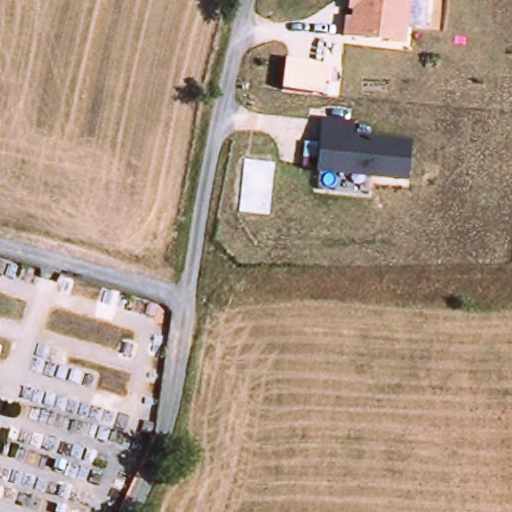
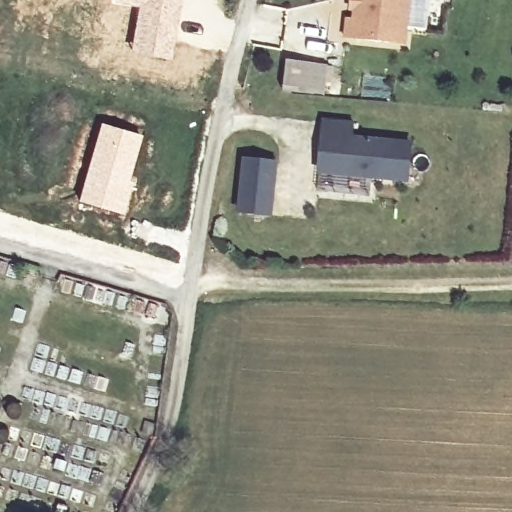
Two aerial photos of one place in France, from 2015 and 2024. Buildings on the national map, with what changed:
new [(111,0),(182,0),(170,59),(128,51),(136,6),(111,1),(111,0)]
unchanged [(345,40),(346,18),(354,19),(355,11),(350,11),(350,0),(414,0),(409,47),(345,40)]
new [(285,60),(333,67),(332,83),(325,83),(323,95),(282,92),(285,60)]
unchanged [(325,117),(356,120),(355,135),(415,142),(411,183),(320,175),(325,117)]
new [(100,121),(143,134),(130,179),(133,181),(124,213),(76,200),(100,121)]
unchanged [(236,215),(242,159),(278,162),(272,219),(236,215)]

